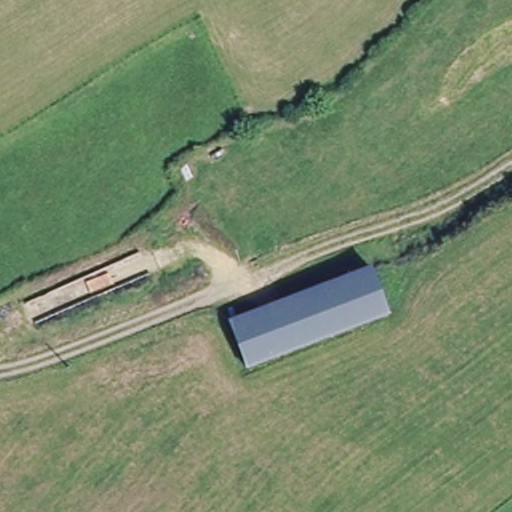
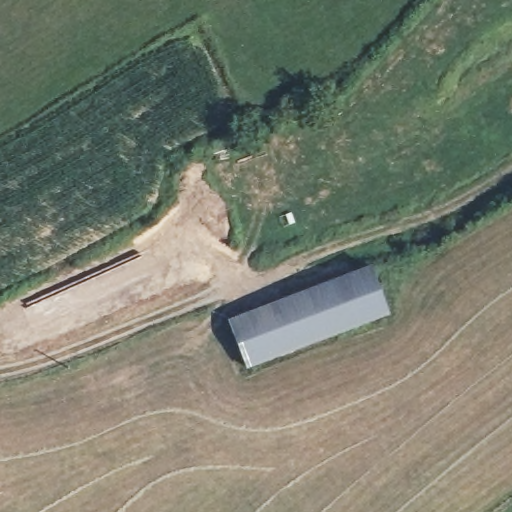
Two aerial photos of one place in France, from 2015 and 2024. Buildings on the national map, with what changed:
unchanged [(249,365),(230,317),(370,265),(392,315),(249,365)]

